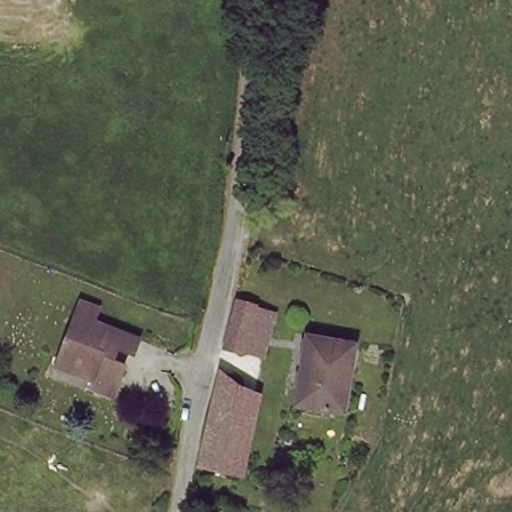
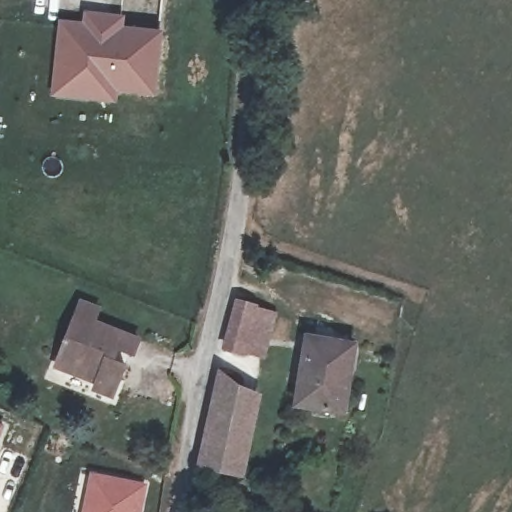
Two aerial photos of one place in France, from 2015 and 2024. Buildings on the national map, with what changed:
new [(163,31),(155,97),(117,92),(116,104),(50,98),(58,19),(82,22),(84,11),(125,15),(124,26),(163,31)]
unchanged [(221,348),(236,295),(261,302),(256,316),(280,321),(273,362),(221,348)]
unchanged [(79,299),(99,306),(94,321),(138,338),(132,356),(114,348),(109,364),(123,370),(112,400),(93,394),(97,383),(53,365),(79,299)]
unchanged [(301,409),(306,334),(352,340),(351,348),(347,413),(301,409)]
unchanged [(248,475),(231,472),(214,469),(230,383),(247,384),(236,443),(253,446),(248,475)]
new [(3,396),(0,405),(0,395),(3,396)]
new [(141,512),(81,512),(88,472),(147,484),(141,512)]

